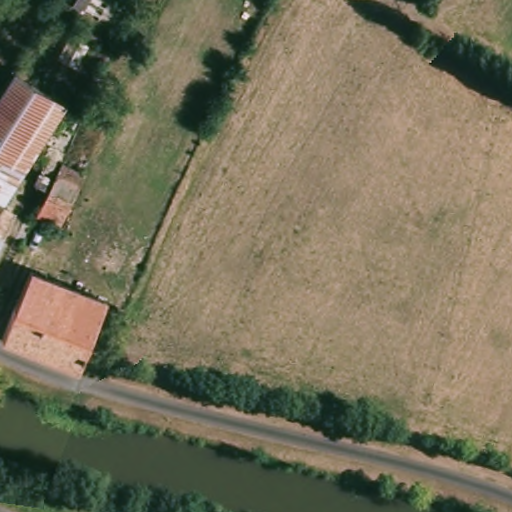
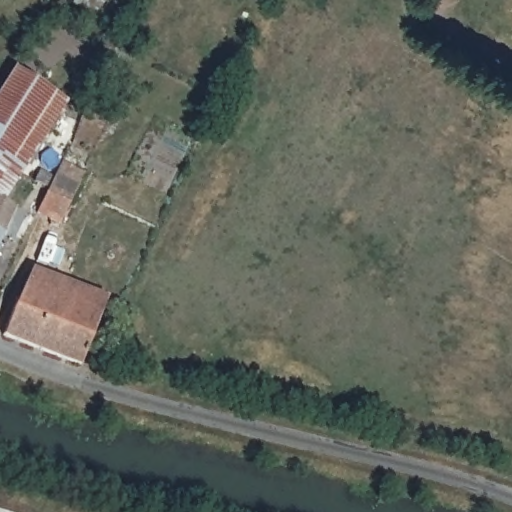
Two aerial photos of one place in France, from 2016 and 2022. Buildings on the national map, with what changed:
unchanged [(79,15),(86,0),(98,0),(88,19),(79,15)]
unchanged [(12,70),(49,94),(0,180),(0,90),(12,70)]
unchanged [(61,163),(69,166),(74,169),(75,169),(79,171),(83,173),(66,208),(57,224),(37,214),(38,212),(38,210),(39,209),(42,203),(51,183),(60,165),(60,164),(61,162),(61,163)]
unchanged [(3,232),(0,238),(0,230),(3,232)]
unchanged [(31,270),(104,299),(78,364),(71,361),(46,352),(4,334),(31,270)]

